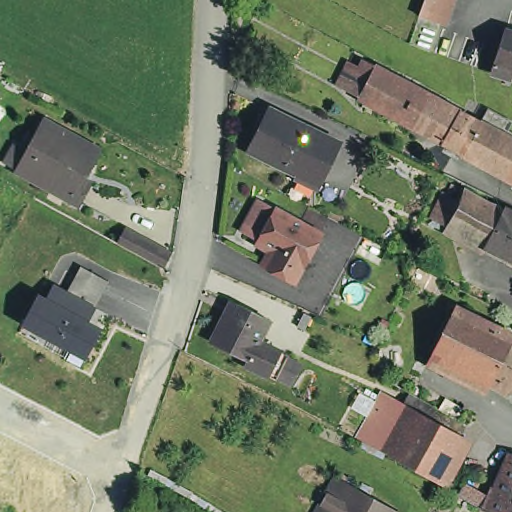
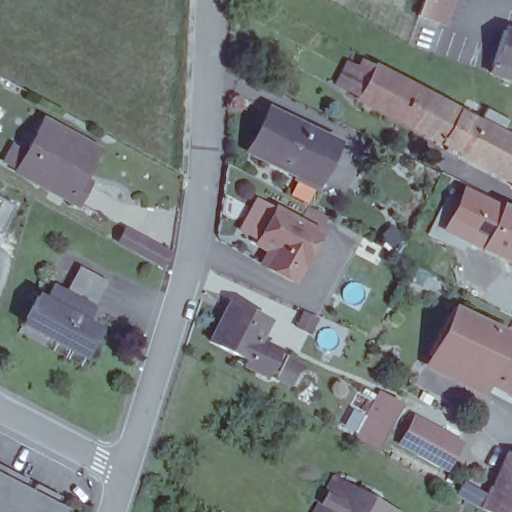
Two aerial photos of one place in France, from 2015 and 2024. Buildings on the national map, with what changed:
unchanged [(413,21),(420,0),(450,0),(439,30),(413,21)]
unchanged [(492,68),(504,26),(512,28),(512,72),(512,74),(492,68)]
unchanged [(413,127),(358,98),(358,97),(336,85),(348,63),(359,69),(364,61),(374,67),(374,66),(478,122),(461,153),(413,126),(413,127)]
unchanged [(249,151),(269,110),(337,144),(318,184),(249,151)]
unchanged [(23,148),(39,116),(93,144),(81,165),(88,168),(72,198),(19,169),(13,166),(23,148)]
unchanged [(512,182),(461,154),(461,153),(478,122),(512,140),(512,182)]
unchanged [(444,231),(447,226),(432,219),(444,194),(459,201),(464,190),(488,204),(503,210),(484,246),(471,239),(468,243),(444,231)]
new [(18,208),(2,234),(0,233),(0,199),(18,208)]
unchanged [(299,286),(261,269),(265,257),(260,249),(238,236),(257,199),(326,232),(299,286)]
unchanged [(512,211),(512,260),(484,246),(503,210),(504,208),(512,211)]
unchanged [(114,241),(127,223),(177,251),(162,272),(114,241)]
unchanged [(86,322),(101,332),(88,355),(76,349),(73,352),(58,345),(53,353),(17,337),(40,299),(47,301),(58,286),(68,290),(81,267),(109,283),(86,322)]
unchanged [(275,380),(244,364),(246,360),(211,341),(231,301),(269,320),(258,341),(288,356),(275,380)]
unchanged [(431,349),(456,302),(512,330),(512,336),(511,339),(489,379),(489,380),(431,349)]
unchanged [(512,339),(512,383),(511,383),(508,388),(489,379),(511,339),(512,339)]
unchanged [(374,445),(377,439),(390,446),(412,406),(456,430),(430,476),(374,445)]
unchanged [(464,491),(486,503),(491,492),(499,496),(512,464),(512,512),(481,512),(479,512),(459,501),(464,491)]
new [(30,481),(24,491),(31,495),(37,484),(61,497),(54,512),(0,512),(0,465),(30,481)]
unchanged [(390,512),(331,512),(345,487),(390,512)]

